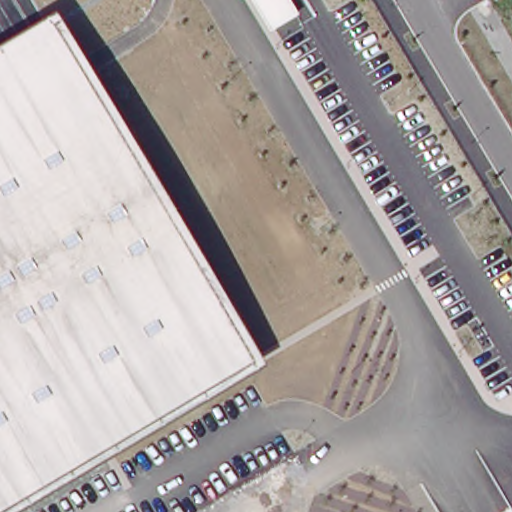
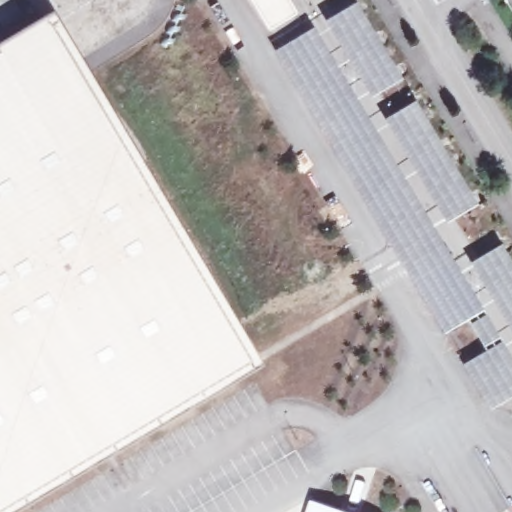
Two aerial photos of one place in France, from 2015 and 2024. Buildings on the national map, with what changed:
unchanged [(269,30),(250,0),(288,0),(296,13),(269,30)]
new [(356,0),(402,72),(370,93),(324,19),(356,0)]
unchanged [(260,363),(15,512),(0,512),(0,43),(53,12),(260,363)]
new [(461,364),(485,347),(467,320),(466,318),(443,332),(272,51),(313,24),(372,118),(437,226),(456,256),(462,251),(470,260),(500,241),(512,260),(512,334),(504,321),(496,326),(502,335),(499,336),(512,357),(512,392),(489,406),(461,364)]
new [(379,113),(383,118),(415,98),(477,198),(437,226),(372,118),(379,113)]

